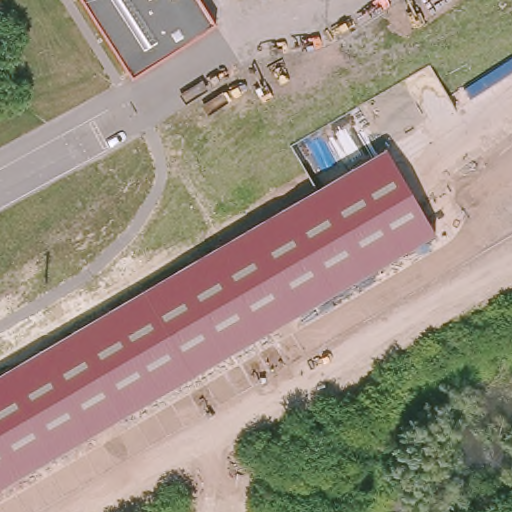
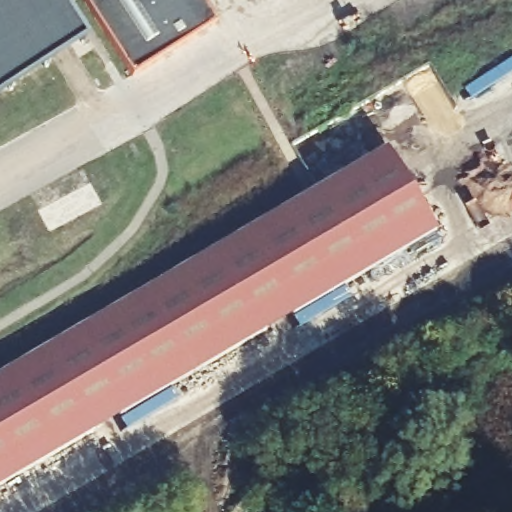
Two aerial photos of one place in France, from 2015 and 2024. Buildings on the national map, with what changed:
new [(0,97),(0,0),(55,0),(83,43),(0,97)]
unchanged [(162,62),(131,82),(78,0),(196,0),(215,28),(162,62)]
unchanged [(0,487),(0,373),(385,147),(435,233),(0,487)]

